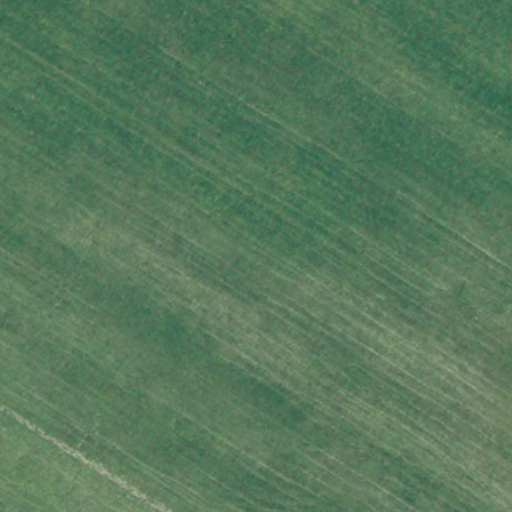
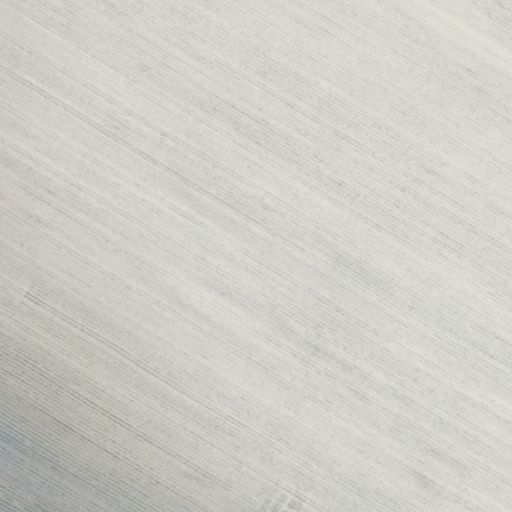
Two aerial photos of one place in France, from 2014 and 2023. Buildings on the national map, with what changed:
[]

